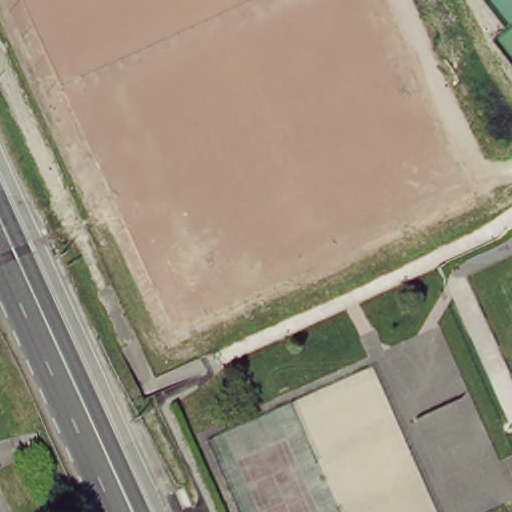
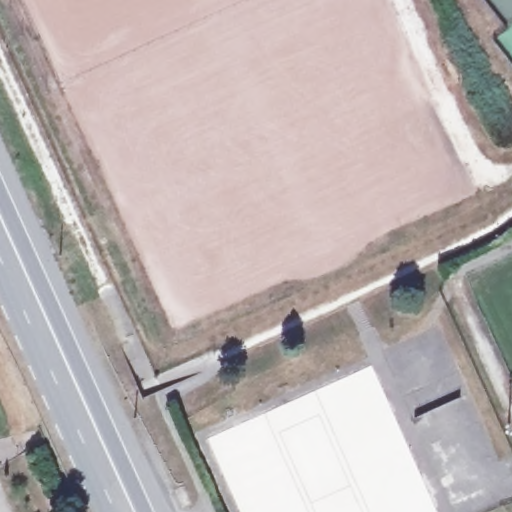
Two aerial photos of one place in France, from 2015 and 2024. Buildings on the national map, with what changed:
[]

